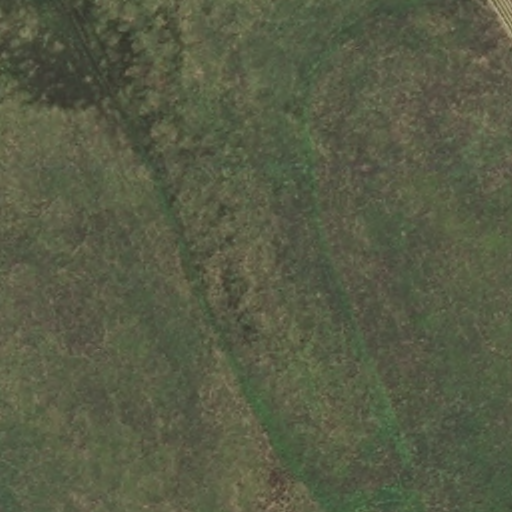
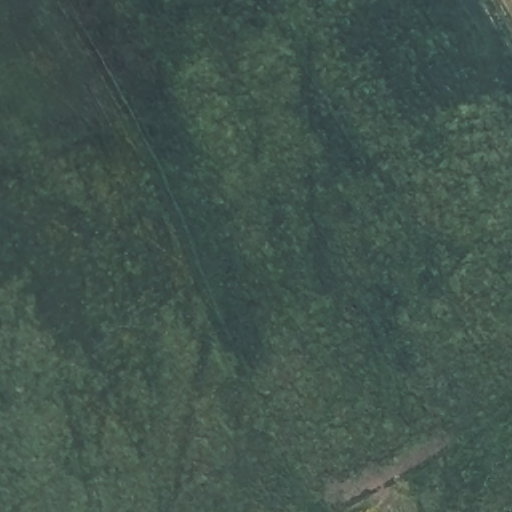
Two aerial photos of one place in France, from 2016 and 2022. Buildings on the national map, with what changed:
[]

